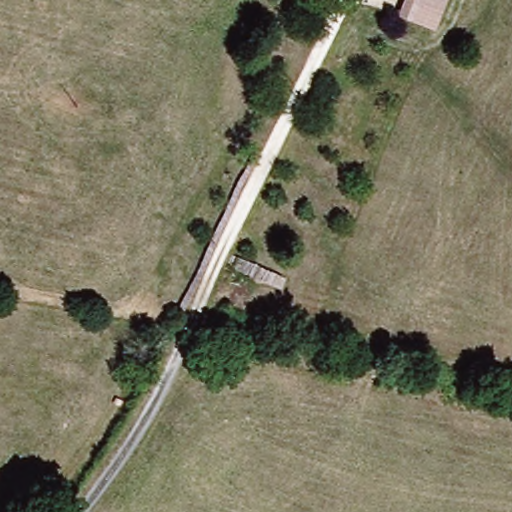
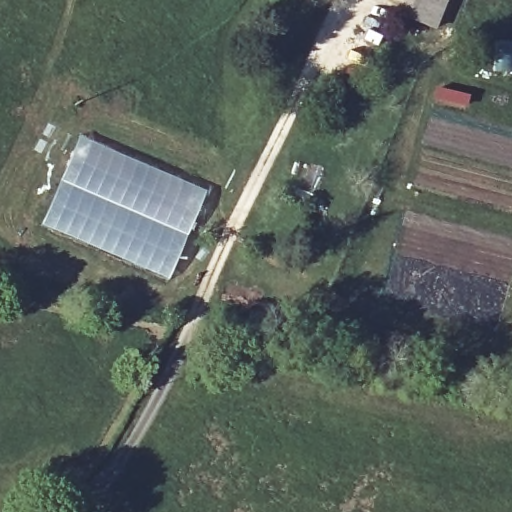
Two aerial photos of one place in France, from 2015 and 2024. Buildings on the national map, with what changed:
unchanged [(434,34),(396,20),(404,0),(448,0),(434,34)]
new [(79,134),(129,157),(206,190),(168,280),(38,225),(79,134)]

